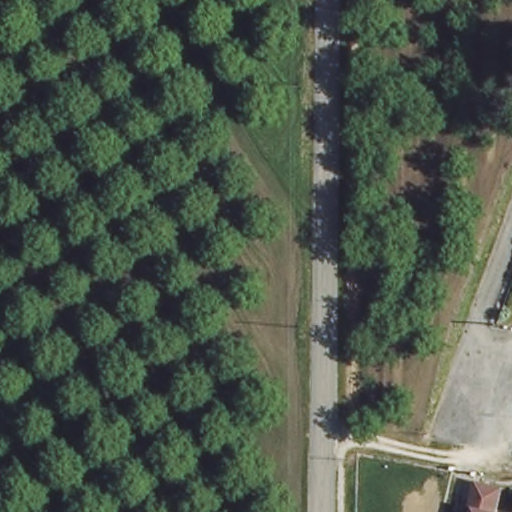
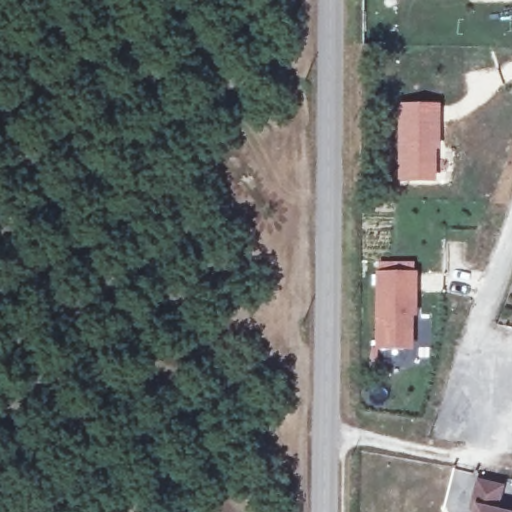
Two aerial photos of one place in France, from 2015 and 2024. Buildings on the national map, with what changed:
new [(397,102),(441,102),(437,181),(397,181),(397,102)]
new [(418,271),(418,315),(412,315),(413,350),(402,349),(402,364),(388,364),(387,351),(374,350),(375,271),(418,271)]
unchanged [(493,510),(512,511),(512,512),(469,512),(471,505),(468,503),(475,479),(501,485),(493,510)]

